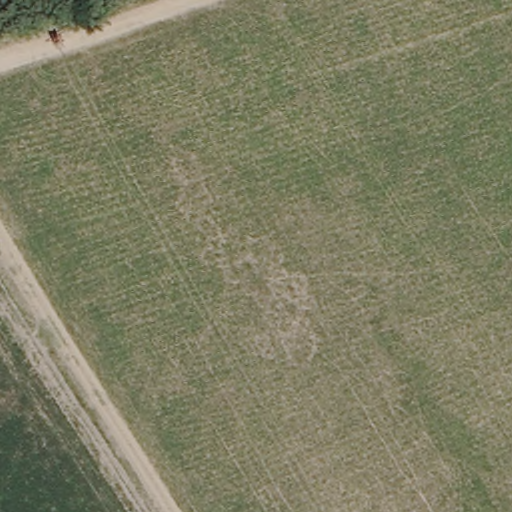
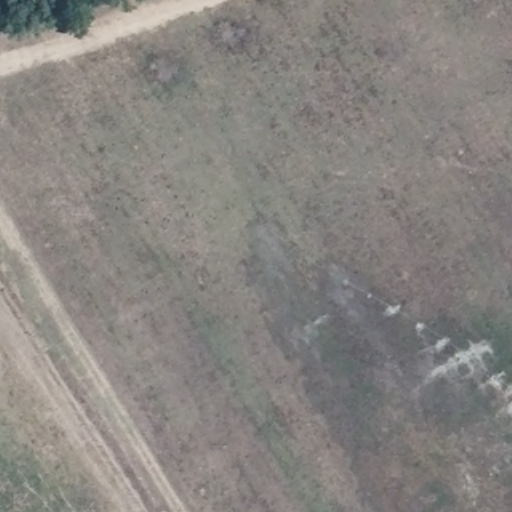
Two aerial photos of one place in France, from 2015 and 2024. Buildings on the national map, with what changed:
[]

